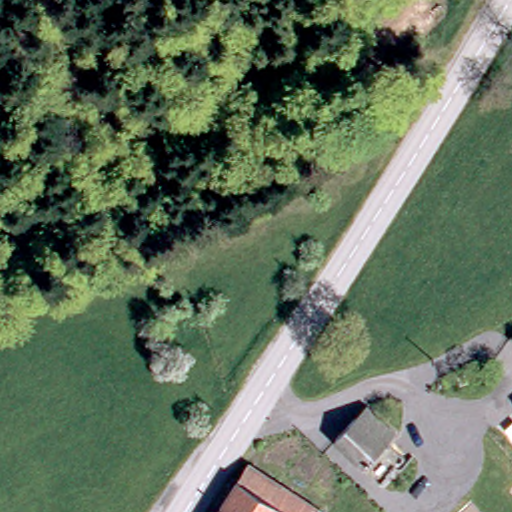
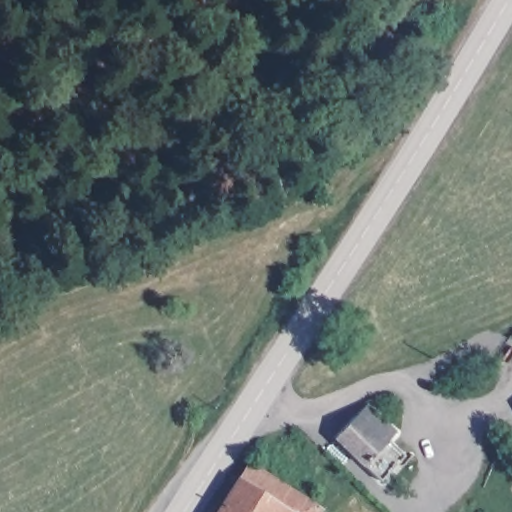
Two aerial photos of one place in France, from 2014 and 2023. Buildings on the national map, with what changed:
unchanged [(361,399),(390,427),(385,435),(401,449),(387,465),(377,477),(370,469),(331,432),(350,410),(361,399)]
unchanged [(237,475),(247,460),(280,479),(312,499),(319,502),(313,512),(208,512),(233,472),(237,475)]

